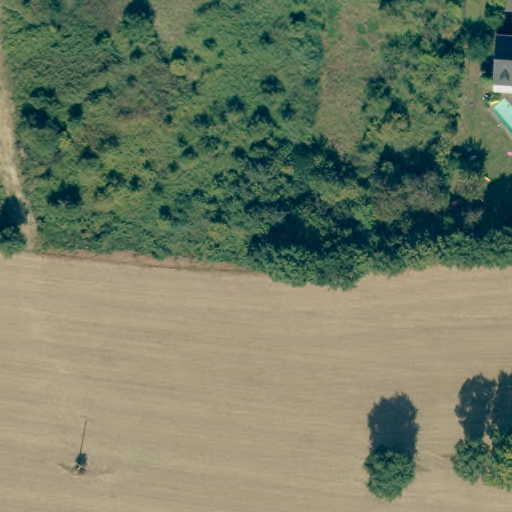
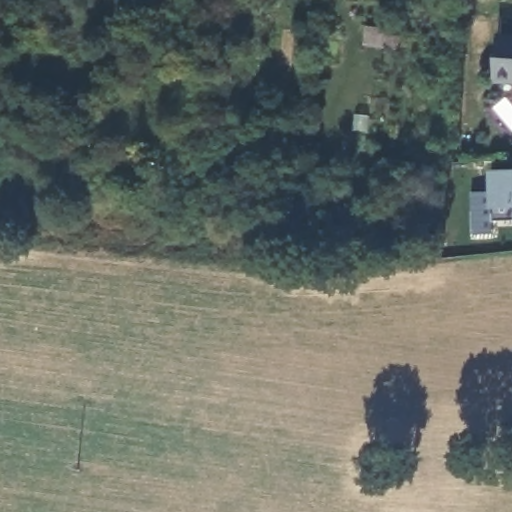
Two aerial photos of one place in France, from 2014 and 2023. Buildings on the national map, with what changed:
unchanged [(493,36),(512,38),(512,84),(488,82),(493,36)]
new [(512,221),(493,222),(493,234),(472,235),(470,194),(490,193),(490,172),(512,171),(512,221)]

